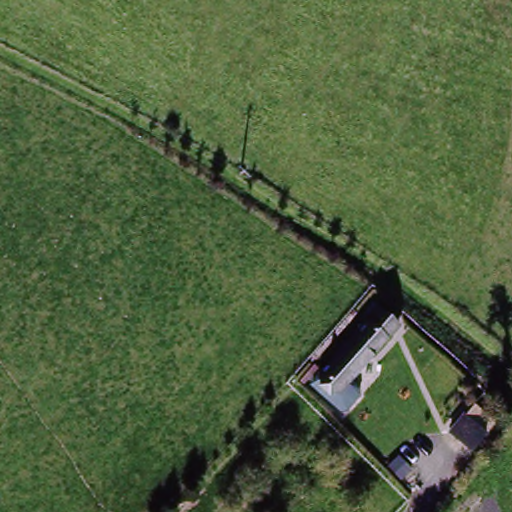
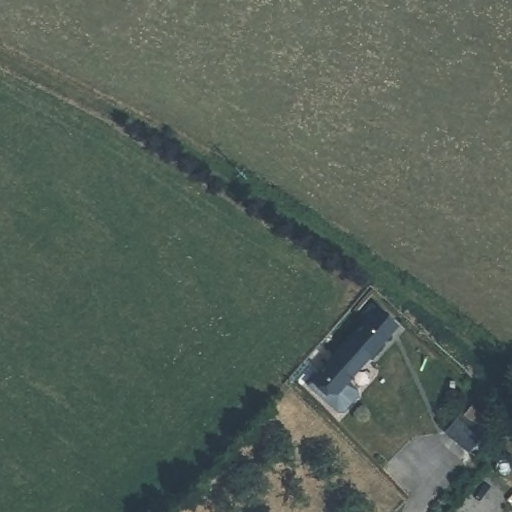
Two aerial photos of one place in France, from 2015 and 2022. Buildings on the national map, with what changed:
unchanged [(385,343),(337,398),(321,383),(368,330),(385,343)]
unchanged [(457,448),(435,432),(450,414),(460,400),(470,408),(481,417),(457,448)]

